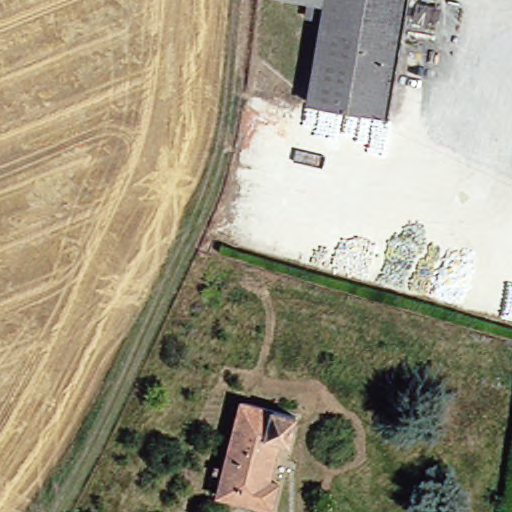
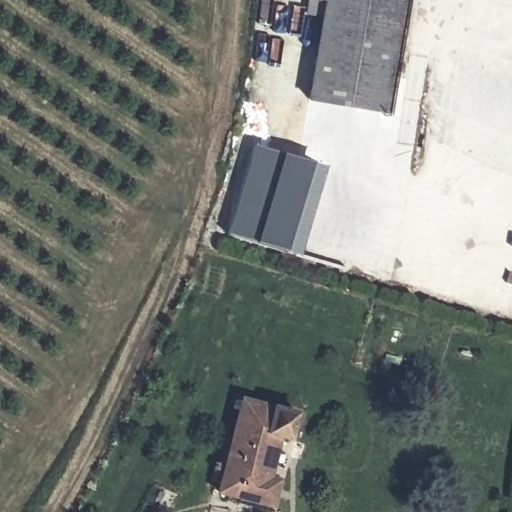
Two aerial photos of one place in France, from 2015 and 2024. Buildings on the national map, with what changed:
unchanged [(382,108),(302,93),(316,0),(396,0),(382,108)]
new [(317,162),(293,253),(236,237),(260,147),(317,162)]
unchanged [(280,442),(273,440),(262,476),(272,480),(265,506),(209,492),(233,404),(287,419),(280,442)]

